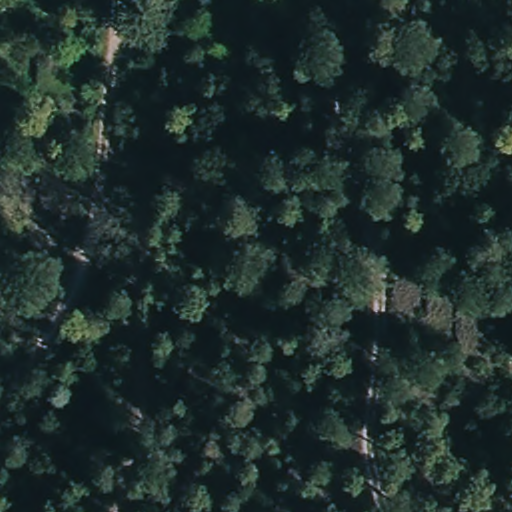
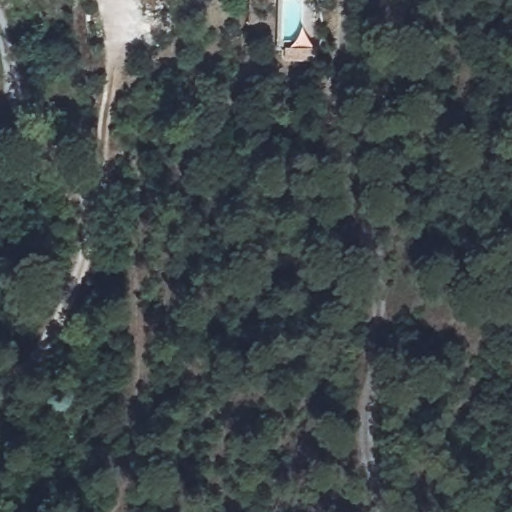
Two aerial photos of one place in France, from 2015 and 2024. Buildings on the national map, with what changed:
[]

